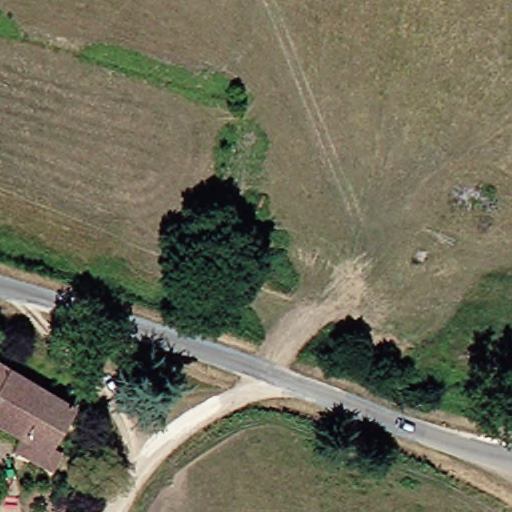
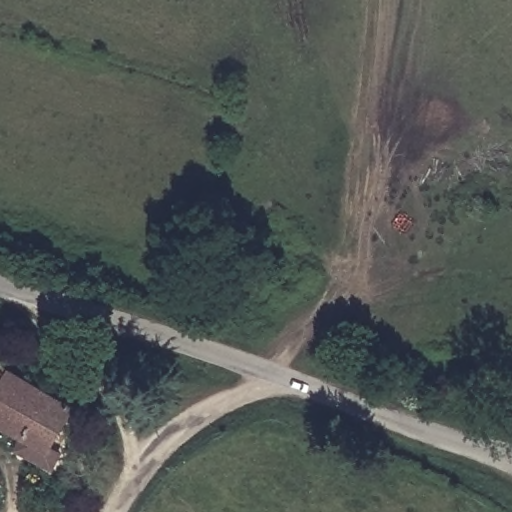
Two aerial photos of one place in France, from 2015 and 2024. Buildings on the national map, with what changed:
unchanged [(79,407),(56,448),(66,453),(57,470),(20,451),(28,437),(0,422),(0,362),(79,407)]

